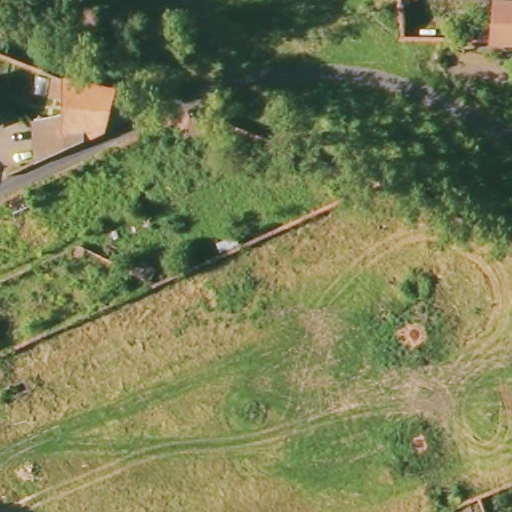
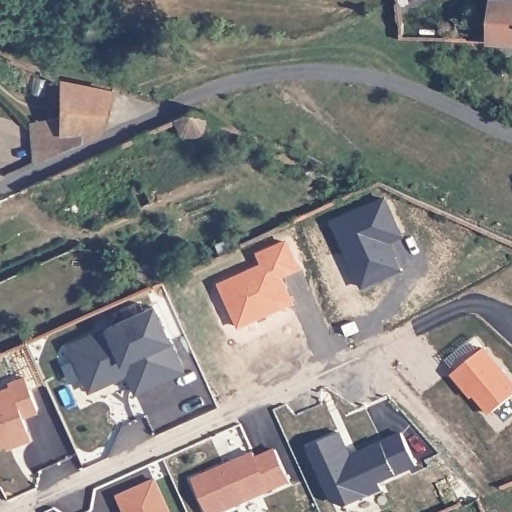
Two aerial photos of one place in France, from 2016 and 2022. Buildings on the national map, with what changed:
unchanged [(492,44),(495,3),(512,4),(512,44),(492,44)]
unchanged [(38,126),(64,115),(65,102),(52,100),(54,81),(66,87),(113,95),(103,135),(37,166),(38,126)]
unchanged [(205,116),(197,133),(182,134),(177,117),(192,111),(205,116)]
new [(402,270),(364,287),(336,221),(388,199),(404,236),(390,242),(395,256),(402,270)]
new [(84,375),(69,341),(154,305),(182,368),(148,383),(138,359),(126,365),(128,369),(127,370),(107,378),(89,386),(84,375)]
new [(447,360),(475,338),(484,349),(512,383),(512,397),(491,415),(469,388),(467,390),(454,374),(456,372),(447,360)]
new [(138,359),(148,383),(135,388),(127,370),(128,369),(126,365),(138,359)]
new [(0,387),(11,383),(9,379),(26,373),(38,406),(23,412),(27,426),(30,434),(6,442),(5,438),(0,440),(0,387)]
new [(352,461),(350,456),(357,453),(401,433),(415,465),(379,481),(382,488),(346,505),(332,499),(309,445),(339,432),(352,461)]
new [(256,457),(275,448),(288,480),(213,512),(207,512),(192,478),(253,451),(256,457)]
new [(123,512),(118,496),(154,480),(168,512),(123,512)]

